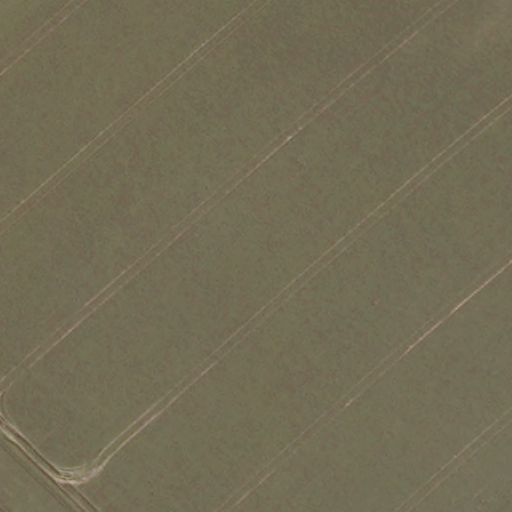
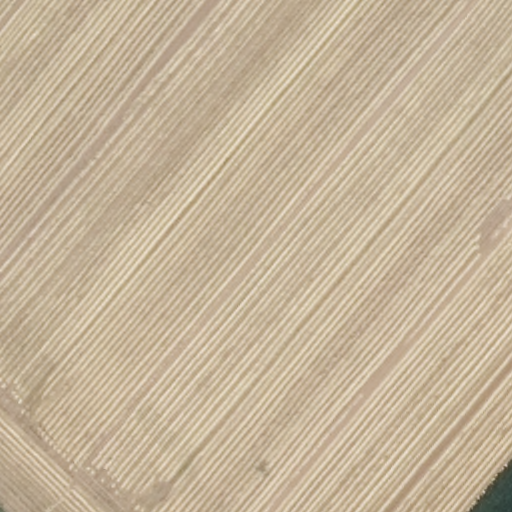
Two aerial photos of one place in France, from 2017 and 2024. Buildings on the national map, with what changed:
unchanged [(313,23),(300,36),(288,25),(302,11),(313,23)]

